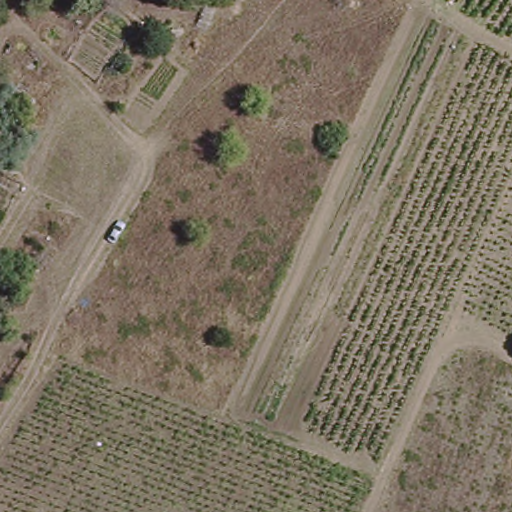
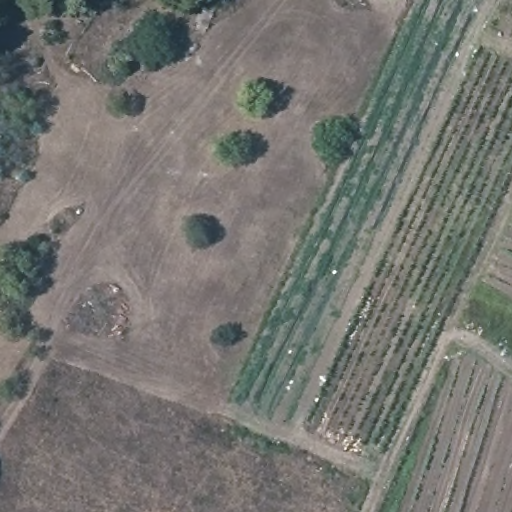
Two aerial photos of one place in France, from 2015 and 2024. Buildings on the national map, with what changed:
[]

